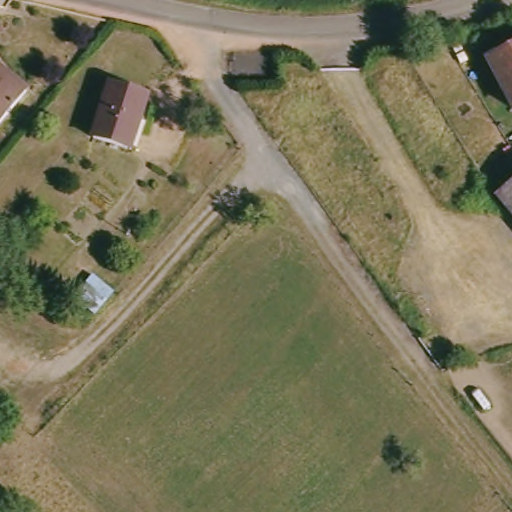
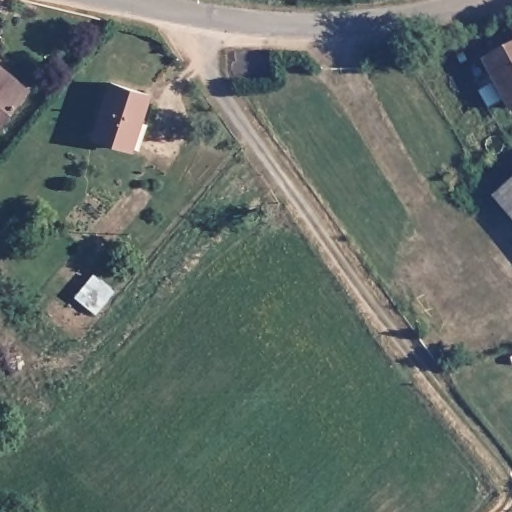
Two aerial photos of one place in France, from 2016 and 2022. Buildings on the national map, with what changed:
unchanged [(512,43),(512,104),(506,108),(481,59),(512,43)]
unchanged [(0,114),(0,62),(8,69),(27,85),(0,114)]
unchanged [(106,79),(147,93),(138,120),(134,119),(124,146),(87,134),(106,79)]
unchanged [(512,175),(512,216),(493,193),(512,175)]

